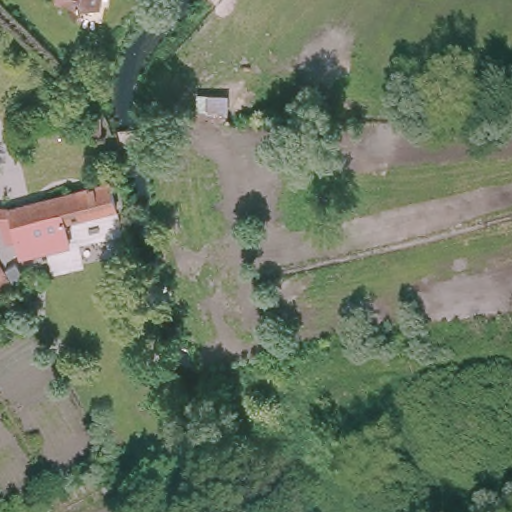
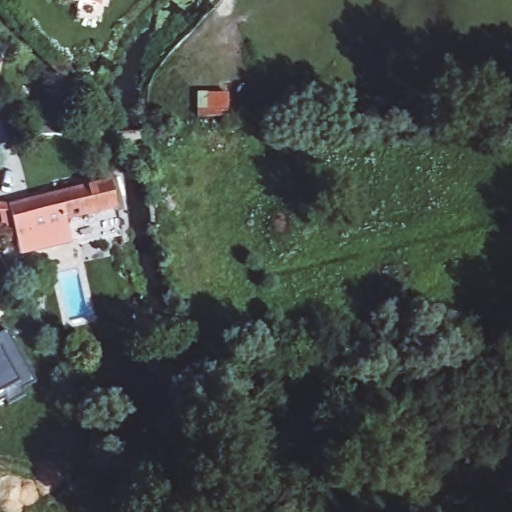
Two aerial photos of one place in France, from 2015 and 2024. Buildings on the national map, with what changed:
unchanged [(87,107),(90,120),(25,134),(22,120),(87,107)]
unchanged [(0,218),(0,204),(110,177),(116,202),(66,214),(66,215),(70,232),(71,238),(22,251),(16,231),(5,232),(5,228),(2,217),(0,218)]
unchanged [(6,286),(2,280),(0,282),(0,264),(10,283),(6,286)]
new [(20,391),(23,397),(10,405),(5,397),(0,400),(0,334),(4,332),(35,382),(20,391)]

